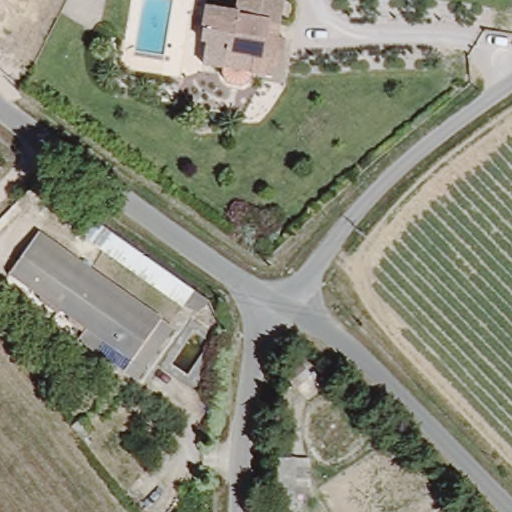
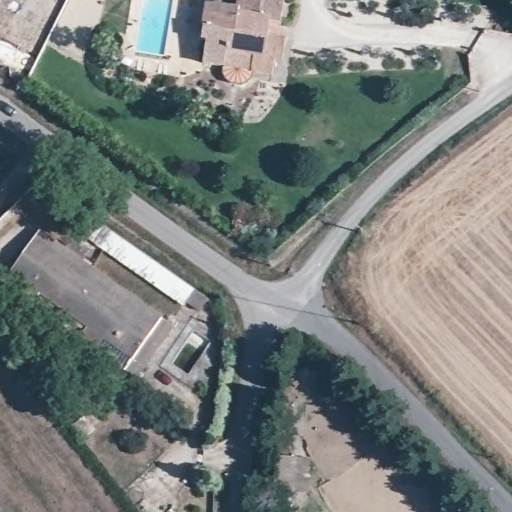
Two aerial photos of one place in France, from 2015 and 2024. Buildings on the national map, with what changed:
unchanged [(198,64),(203,42),(194,40),(201,8),(227,13),(229,0),(279,0),(274,23),(266,22),(263,34),(282,38),(277,64),(269,62),(265,78),(198,64)]
unchanged [(26,197),(36,188),(191,294),(207,305),(200,315),(184,305),(26,197)]
unchanged [(131,377),(122,370),(79,340),(87,328),(9,274),(37,233),(159,318),(169,325),(131,377)]
unchanged [(287,378),(301,366),(309,377),(295,389),(287,378)]
unchanged [(295,464),(295,512),(274,512),(274,464),(295,464)]

